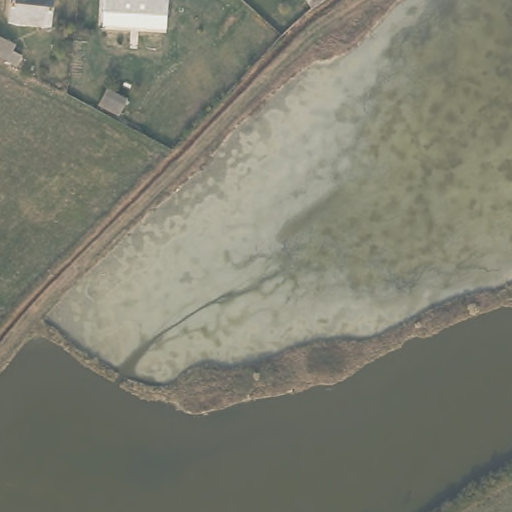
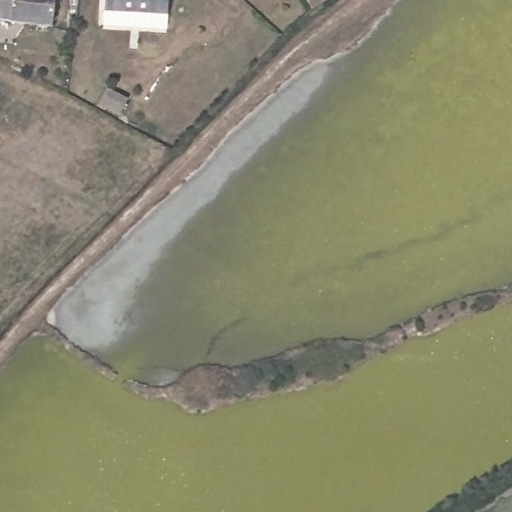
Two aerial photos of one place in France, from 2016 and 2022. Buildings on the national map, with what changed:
unchanged [(12,20),(16,0),(55,0),(51,27),(12,20)]
unchanged [(99,12),(99,0),(164,0),(164,17),(99,12)]
unchanged [(299,1),(300,0),(317,0),(306,10),(299,1)]

